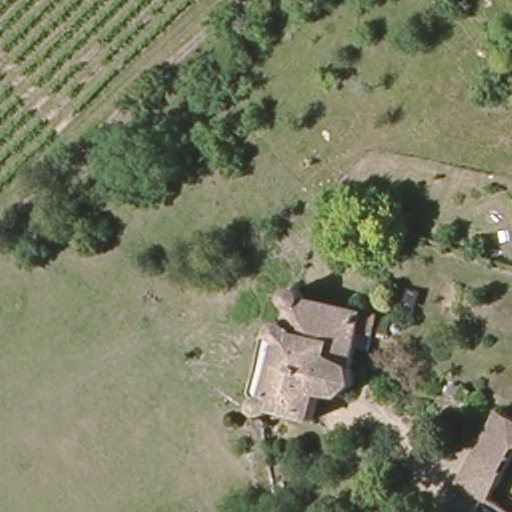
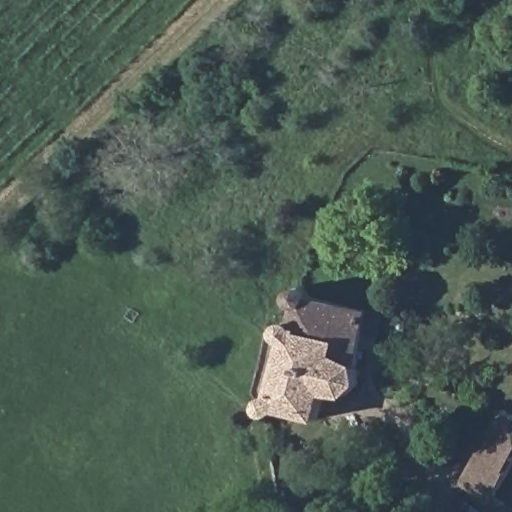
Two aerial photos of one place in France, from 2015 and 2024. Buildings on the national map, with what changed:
unchanged [(272,394),(291,332),(281,324),(287,318),(293,324),(301,299),(292,291),(301,282),(312,293),(386,318),(381,338),(367,335),(357,367),(360,392),(349,407),(327,398),(320,423),(274,407),(264,414),(260,402),(272,394)]
unchanged [(460,483),(497,405),(512,412),(512,472),(511,471),(493,501),(460,483)]

